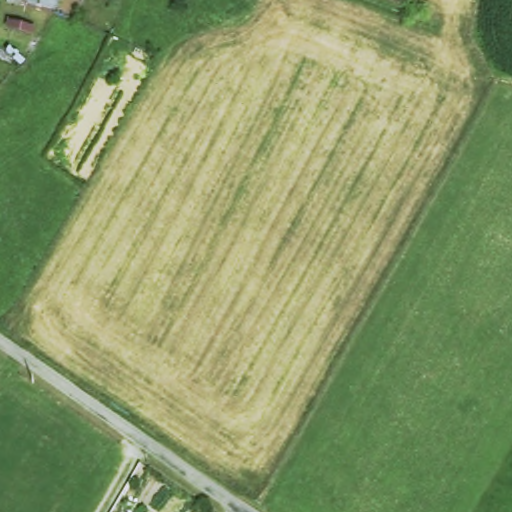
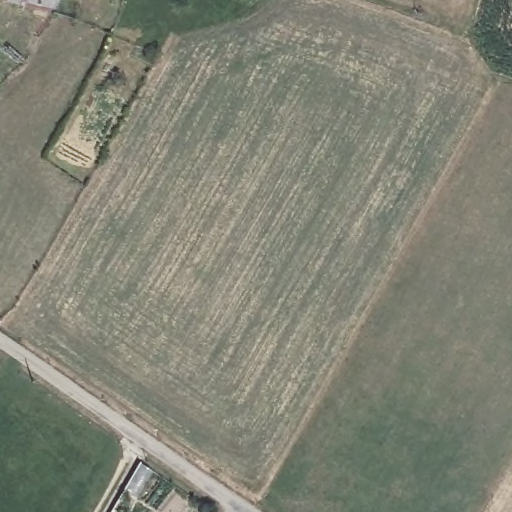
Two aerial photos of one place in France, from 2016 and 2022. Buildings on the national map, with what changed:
unchanged [(37,0),(59,0),(58,5),(37,0)]

